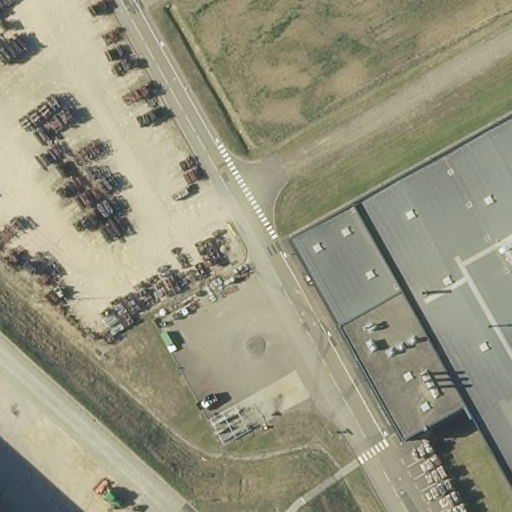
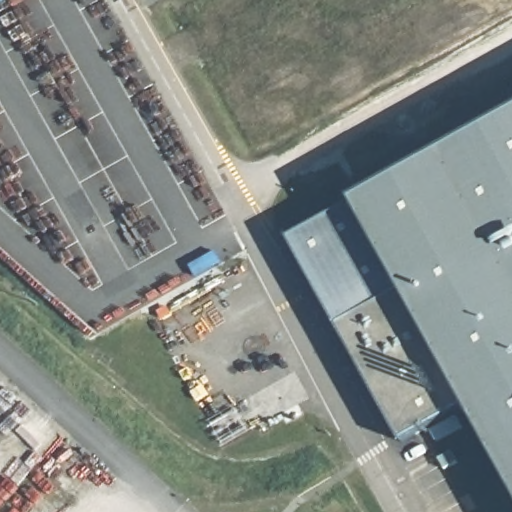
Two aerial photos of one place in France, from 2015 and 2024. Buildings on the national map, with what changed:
unchanged [(403,443),(290,239),(512,115),(512,484),(469,406),(403,443)]

